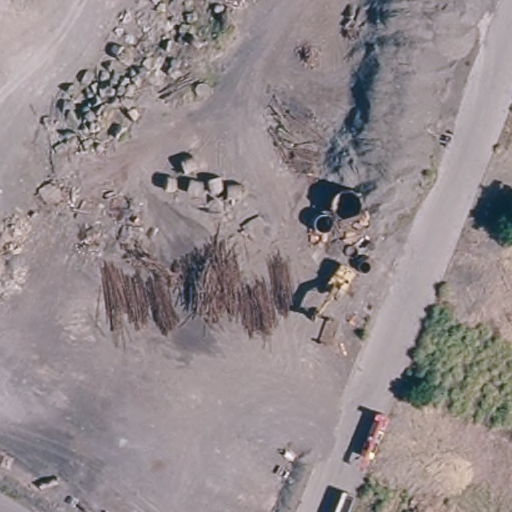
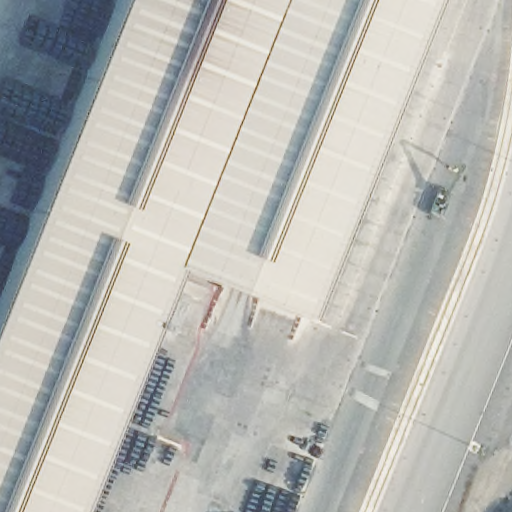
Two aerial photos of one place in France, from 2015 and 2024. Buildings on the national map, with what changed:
new [(172,264),(73,512),(0,512),(0,286),(113,0),(428,0),(303,316),(172,264)]

